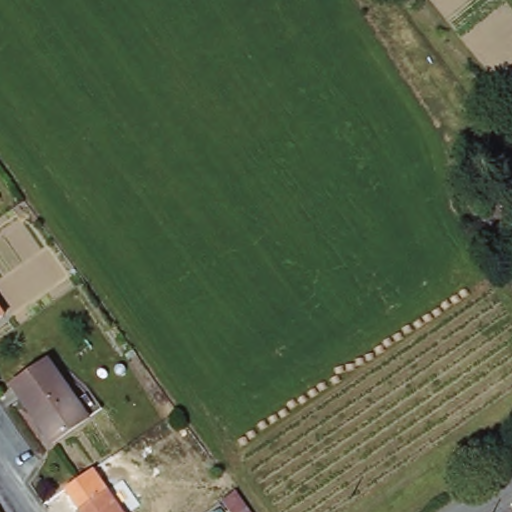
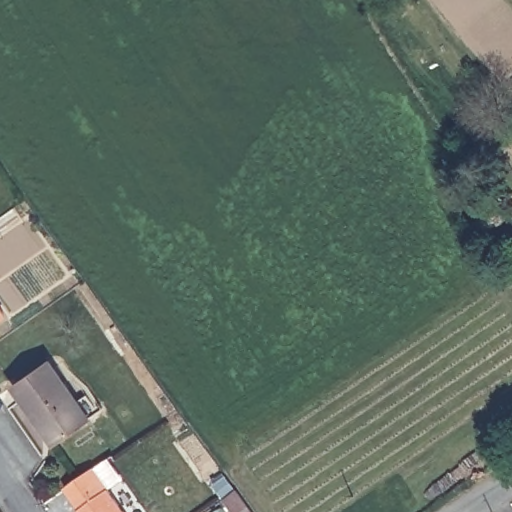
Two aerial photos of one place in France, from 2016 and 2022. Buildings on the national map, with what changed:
unchanged [(3,314),(0,317),(0,309),(3,314)]
unchanged [(13,389),(45,366),(67,396),(34,419),(13,389)]
unchanged [(67,396),(87,424),(54,447),(34,419),(67,396)]
unchanged [(64,489),(94,469),(108,492),(123,512),(78,512),(64,489)]
unchanged [(238,509),(251,501),(258,512),(240,512),(238,509)]

